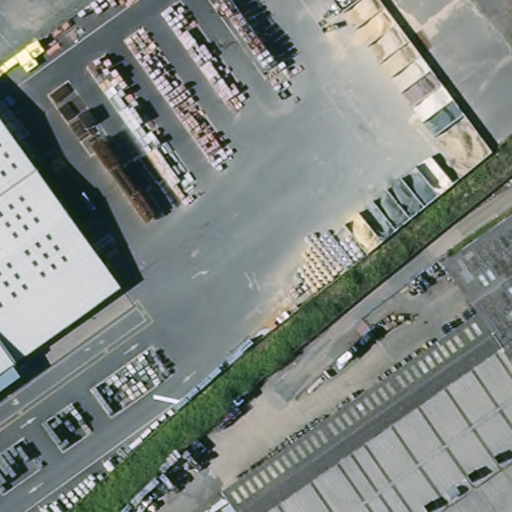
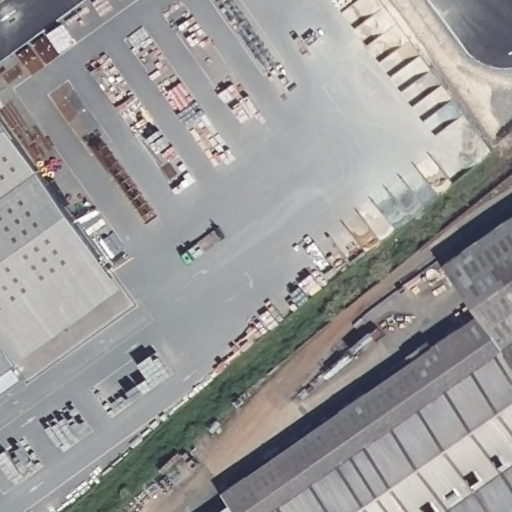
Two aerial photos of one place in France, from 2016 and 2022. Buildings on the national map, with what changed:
unchanged [(0,322),(0,119),(97,254),(0,322)]
unchanged [(223,497),(350,406),(478,315),(445,266),(512,218),(512,512),(229,512),(231,510),(223,497)]
unchanged [(11,361),(0,345),(0,322),(97,254),(119,284),(11,361)]
unchanged [(0,370),(0,345),(11,361),(0,370)]

